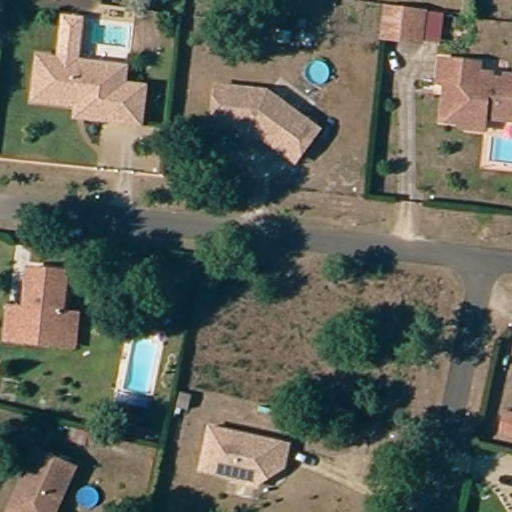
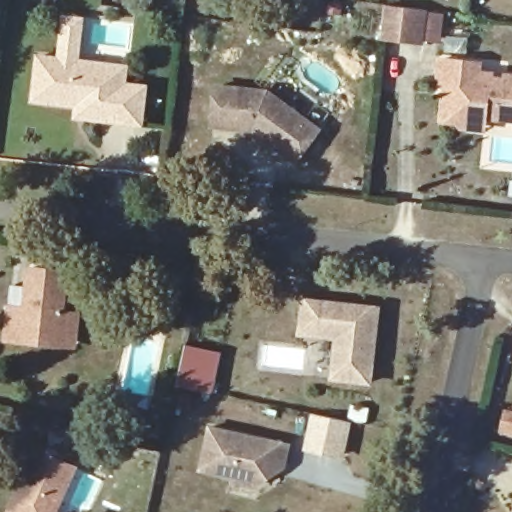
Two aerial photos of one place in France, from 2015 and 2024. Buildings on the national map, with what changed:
unchanged [(433,38),(394,33),(397,1),(437,5),(433,38)]
unchanged [(84,96),(40,91),(45,48),(118,56),(133,58),(131,76),(151,78),(147,115),(126,113),(109,111),(83,108),(84,96)]
unchanged [(454,117),(456,91),(457,78),(449,77),(452,56),(491,60),(490,69),(503,71),(512,72),(512,116),(497,114),(496,126),(473,124),(469,119),(454,117)]
unchanged [(252,119),(224,116),(228,77),(279,83),(331,121),(308,152),(275,128),(261,129),(252,119)]
unchanged [(80,343),(29,337),(12,335),(15,303),(31,305),(36,264),(73,268),(68,309),(83,310),(80,343)]
new [(329,379),(333,339),(297,335),(301,294),(381,303),(373,385),(329,379)]
new [(214,394),(176,386),(184,344),(222,352),(214,394)]
new [(310,412),(351,421),(342,458),(302,449),(310,412)]
unchanged [(282,469),(266,479),(207,466),(216,424),(295,441),(291,458),(290,464),(282,469)]
unchanged [(81,456),(62,512),(18,512),(42,442),(81,456)]

